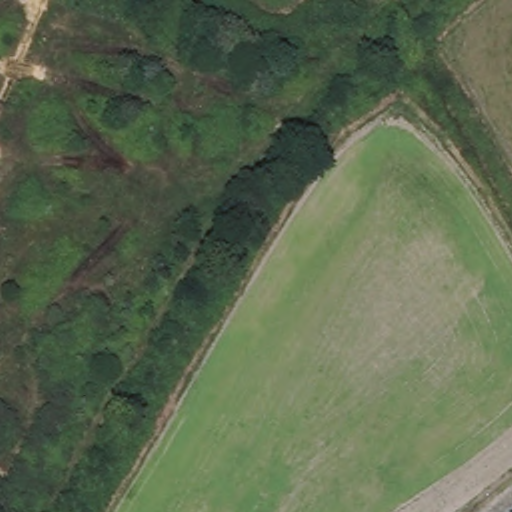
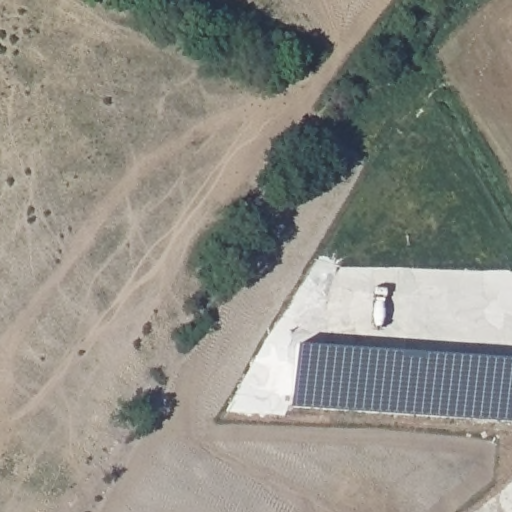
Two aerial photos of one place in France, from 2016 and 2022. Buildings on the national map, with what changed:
new [(296,350),(512,366),(512,426),(292,410),(296,350)]

